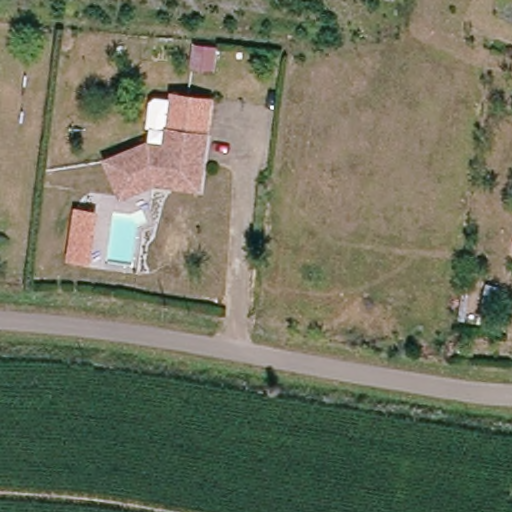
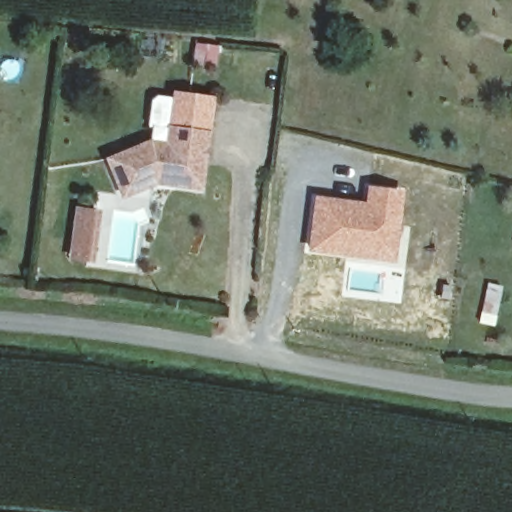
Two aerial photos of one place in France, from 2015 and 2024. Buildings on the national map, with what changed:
unchanged [(199,188),(150,182),(122,193),(105,152),(146,136),(148,122),(145,121),(150,92),(170,94),(170,90),(214,97),(199,188)]
new [(364,202),(365,186),(403,189),(395,262),(306,251),(313,194),(364,202)]
new [(74,205),(100,209),(92,263),(66,260),(74,205)]

